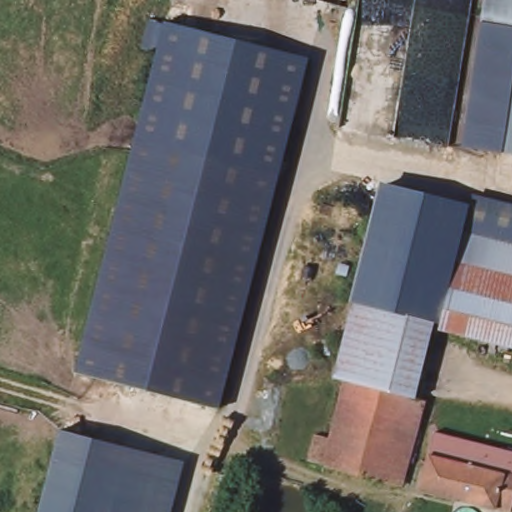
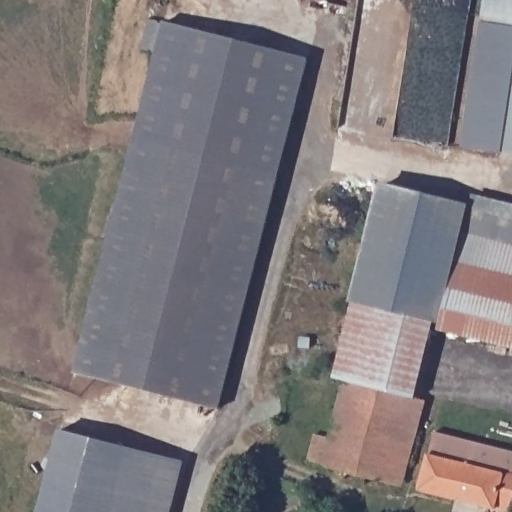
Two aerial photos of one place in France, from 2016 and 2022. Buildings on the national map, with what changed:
unchanged [(482,22),(486,0),(512,0),(512,156),(462,146),(482,22)]
unchanged [(167,25),(313,63),(283,179),(224,412),(79,375),(138,143),(167,25)]
unchanged [(380,183),(473,199),(465,233),(440,332),(435,329),(436,323),(353,303),(380,183)]
unchanged [(512,209),(512,244),(465,233),(473,199),(512,209)]
unchanged [(465,233),(512,244),(512,350),(440,332),(465,233)]
unchanged [(436,323),(435,329),(430,344),(417,400),(345,383),(335,380),(353,303),(436,323)]
unchanged [(426,402),(402,484),(324,464),(310,459),(316,435),(330,439),(345,383),(417,400),(426,402)]
unchanged [(165,460),(182,464),(170,512),(39,512),(59,433),(165,460)]
unchanged [(507,466),(512,467),(512,509),(511,512),(502,512),(419,489),(428,454),(431,455),(437,435),(475,446),(476,444),(510,454),(507,466)]

